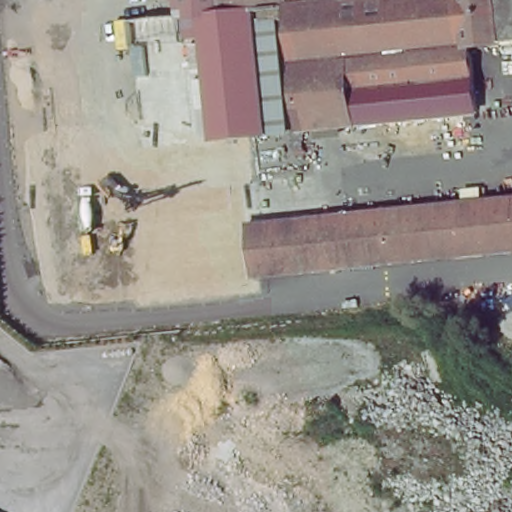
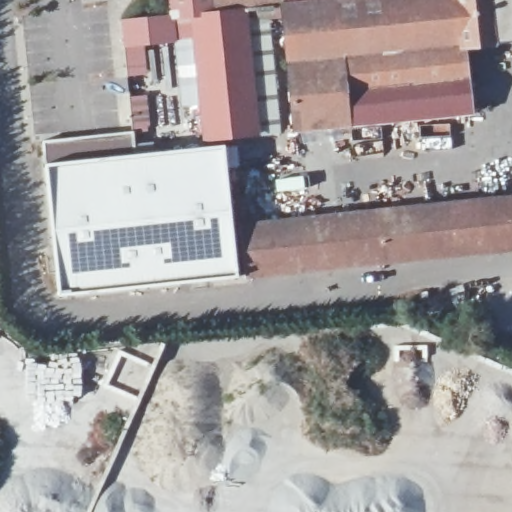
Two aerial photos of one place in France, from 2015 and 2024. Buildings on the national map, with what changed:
unchanged [(468,51),(474,120),(295,136),(281,11),(247,15),(258,140),(205,145),(187,146),(135,151),(119,25),(166,19),(163,0),(512,0),(512,46),(468,51)]
new [(135,151),(187,146),(205,145),(223,143),(237,276),(59,295),(45,164),(43,141),(132,132),(135,151)]
unchanged [(386,188),(388,205),(512,194),(512,253),(343,270),(308,274),(241,281),(233,202),(305,196),(307,213),(337,211),(336,191),(386,188)]

